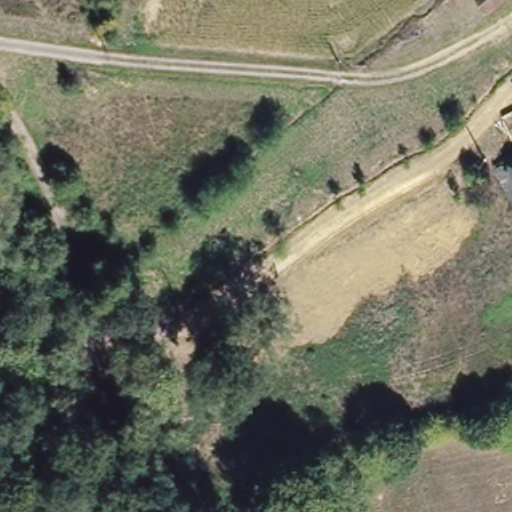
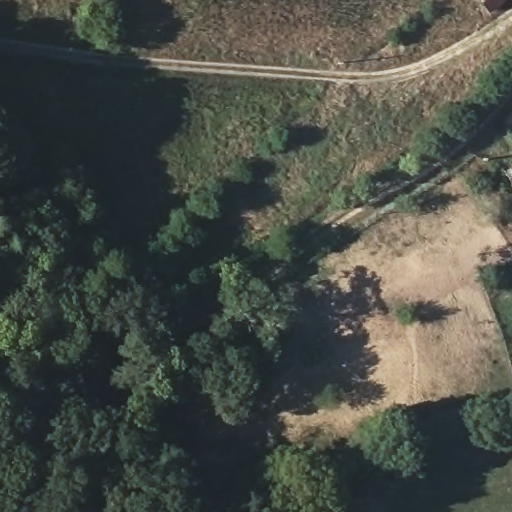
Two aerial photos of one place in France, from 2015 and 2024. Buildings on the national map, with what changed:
unchanged [(484,8),(480,0),(494,0),(484,8)]
unchanged [(503,112),(512,108),(512,131),(503,112)]
unchanged [(496,162),(512,155),(512,195),(496,162)]

